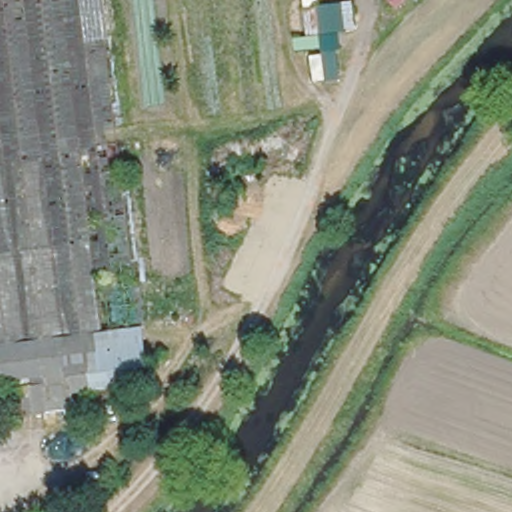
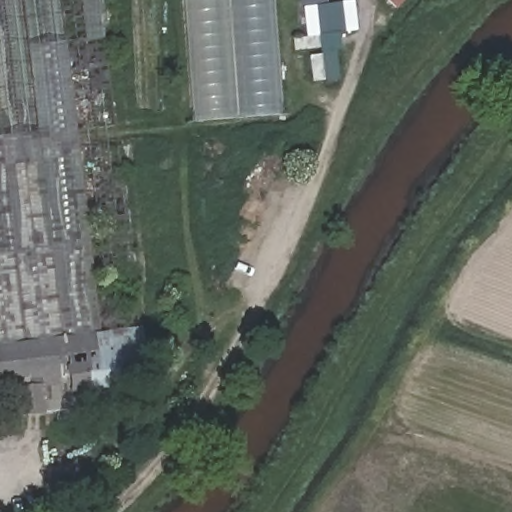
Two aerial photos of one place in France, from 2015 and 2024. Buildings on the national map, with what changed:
unchanged [(0,347),(0,0),(100,0),(136,331),(0,347)]
new [(273,0),(282,114),(195,121),(185,0),(273,0)]
unchanged [(356,31),(338,33),(339,51),(336,52),(339,79),(324,80),(316,6),(352,2),(356,31)]
unchanged [(140,361),(143,383),(79,391),(82,411),(50,415),(49,412),(30,414),(26,386),(26,383),(3,386),(3,388),(6,417),(0,418),(0,347),(136,331),(140,361)]

